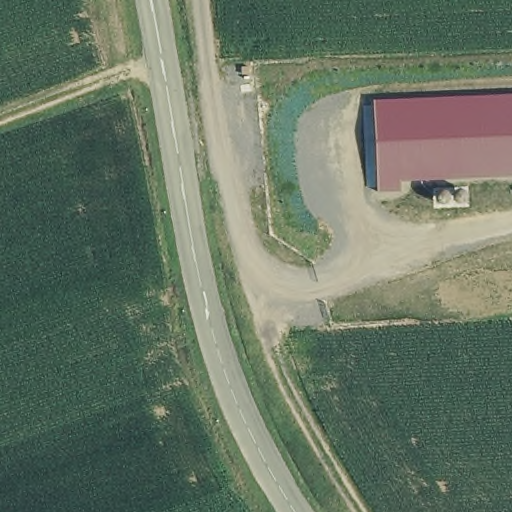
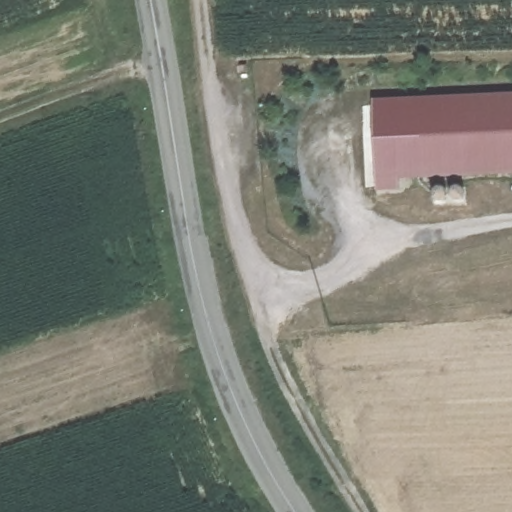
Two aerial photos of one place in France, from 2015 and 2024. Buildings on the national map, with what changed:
unchanged [(512,174),(400,178),(400,190),(376,191),(374,99),(512,93),(512,174)]

